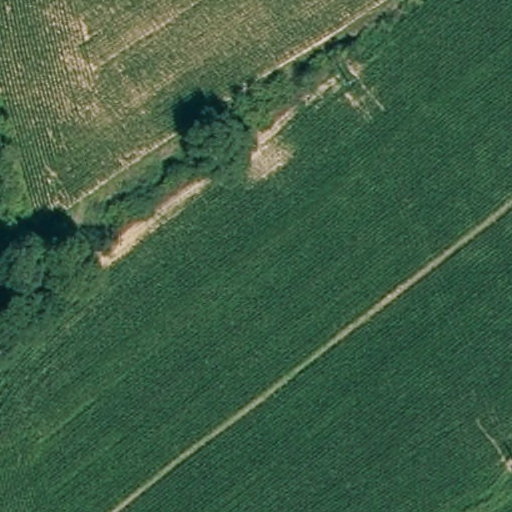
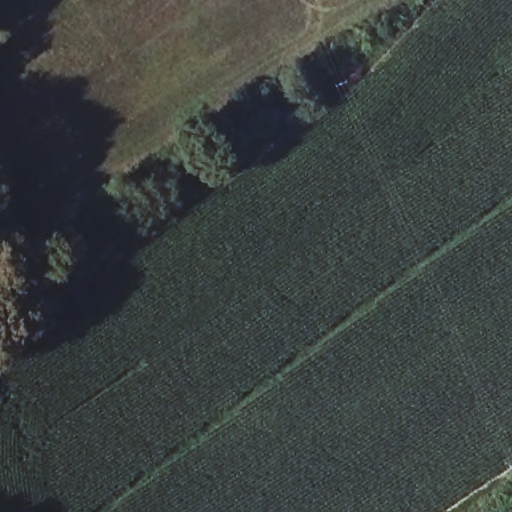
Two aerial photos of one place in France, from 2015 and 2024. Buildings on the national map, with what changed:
[]

